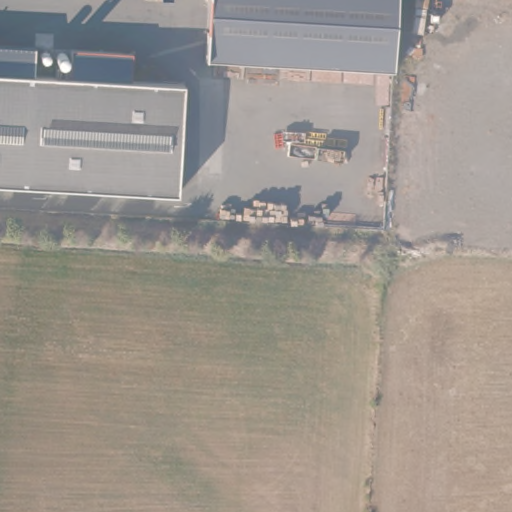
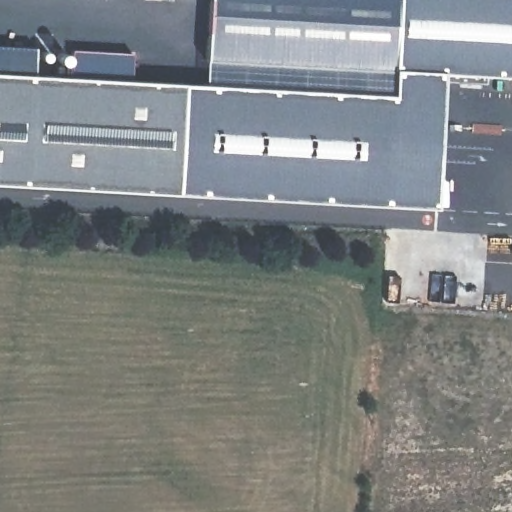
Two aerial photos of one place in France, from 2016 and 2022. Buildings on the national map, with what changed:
new [(204,84),(206,60),(211,60),(393,70),(398,71),(402,0),(512,0),(512,75),(443,72),(436,209),(175,193),(180,82),(204,84)]
unchanged [(398,71),(211,60),(214,0),(402,0),(398,71)]
unchanged [(30,75),(0,74),(0,46),(31,48),(30,75)]
new [(130,80),(69,77),(71,50),(132,52),(130,80)]
unchanged [(180,82),(175,193),(0,185),(0,74),(30,75),(180,82)]

